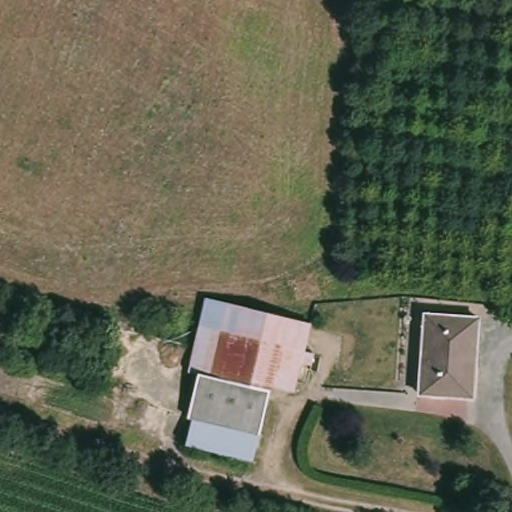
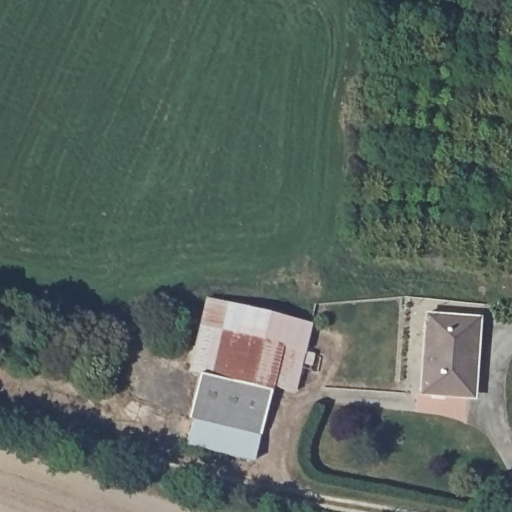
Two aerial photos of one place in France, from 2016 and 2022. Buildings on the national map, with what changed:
unchanged [(204,308),(313,335),(304,376),(195,348),(204,308)]
unchanged [(483,319),(476,407),(421,400),(427,314),(483,319)]
unchanged [(191,361),(195,348),(304,376),(302,383),(277,377),(266,427),(191,407),(200,365),(191,361)]
unchanged [(266,427),(261,453),(185,436),(191,407),(266,427)]

